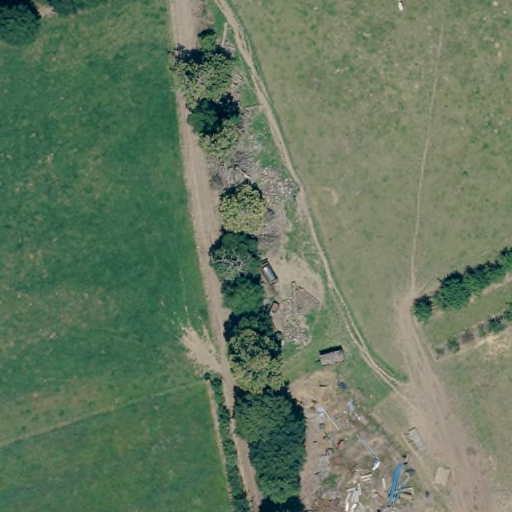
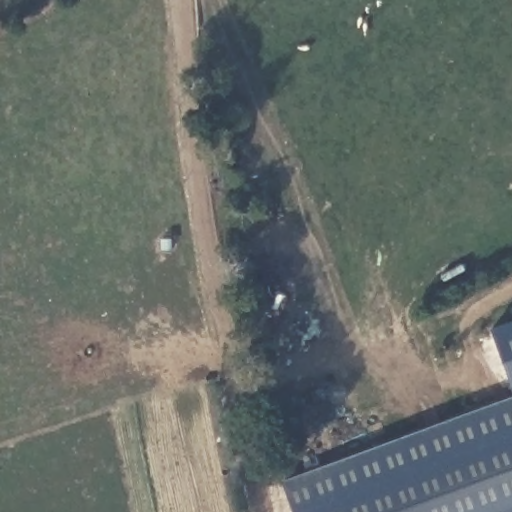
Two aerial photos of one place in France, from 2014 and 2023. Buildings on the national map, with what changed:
new [(283,482),(512,398),(512,512),(295,512),(283,482)]

